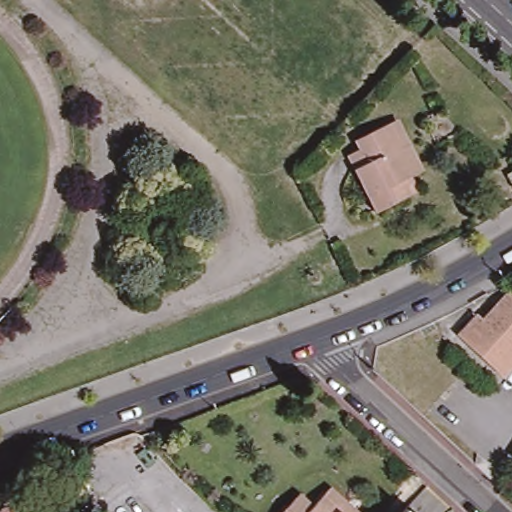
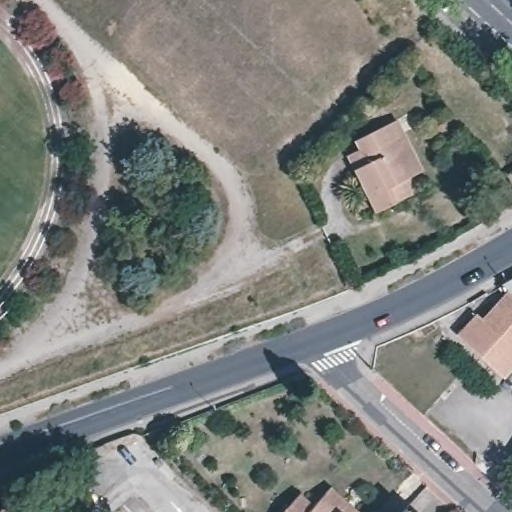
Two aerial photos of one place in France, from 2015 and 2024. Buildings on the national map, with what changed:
unchanged [(413,192),(373,212),(345,154),(357,148),(353,139),(397,117),(423,169),(411,175),(418,189),(413,192)]
unchanged [(512,168),(512,187),(504,172),(512,168)]
unchanged [(484,356),(461,334),(460,333),(460,332),(461,331),(478,312),(483,317),(506,293),(498,284),(503,281),(512,291),(512,368),(504,376),(484,356)]
unchanged [(331,487),(348,502),(358,512),(308,512),(314,506),(331,487)]
unchanged [(314,506),(308,512),(282,512),(299,493),(314,506)]
unchanged [(0,512),(0,509),(9,501),(18,512),(0,512)]
unchanged [(410,512),(401,512),(405,507),(410,512)]

